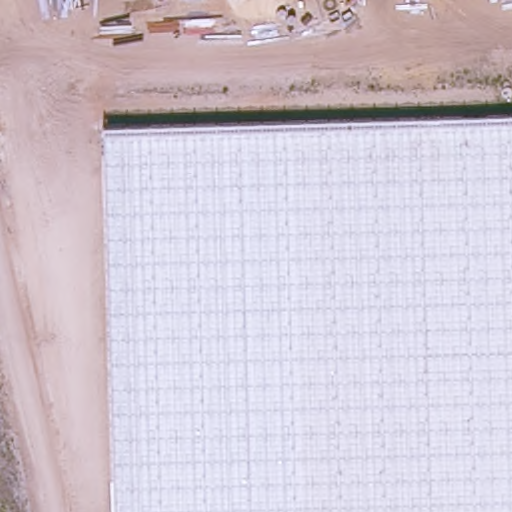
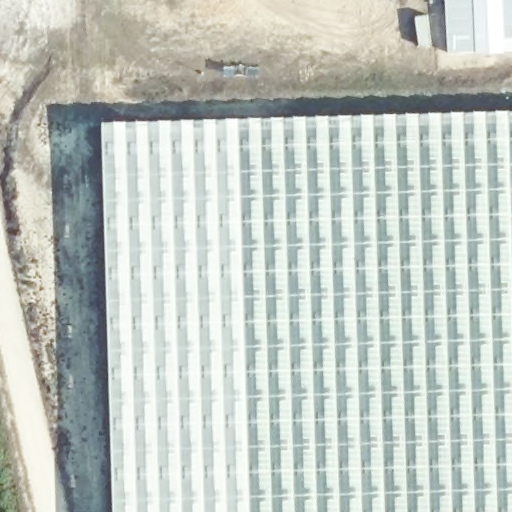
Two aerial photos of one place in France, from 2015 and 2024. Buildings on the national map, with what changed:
new [(447,52),(444,0),(512,0),(512,49),(447,52)]
unchanged [(512,119),(512,512),(113,512),(102,131),(512,119)]

